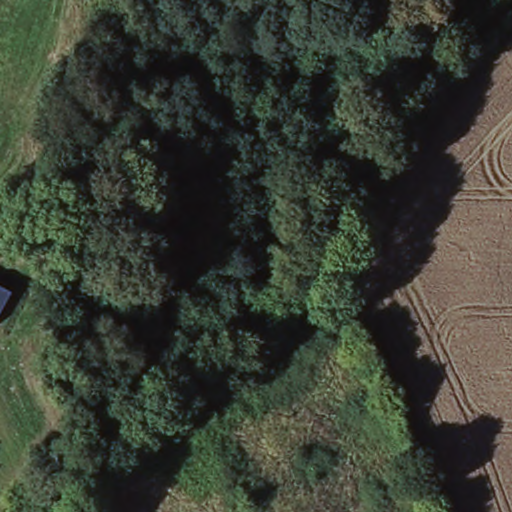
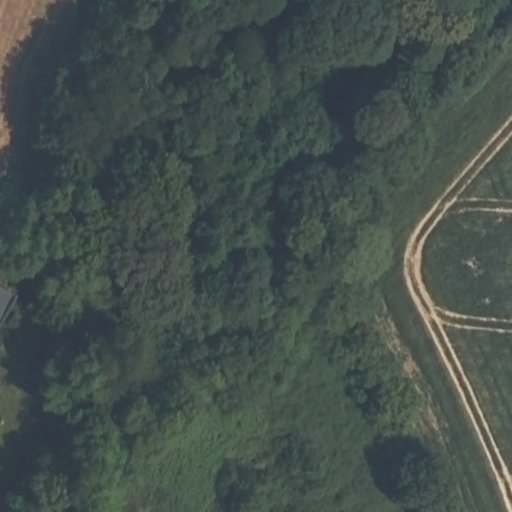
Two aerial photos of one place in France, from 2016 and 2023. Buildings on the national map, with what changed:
unchanged [(0,315),(0,288),(11,294),(0,315)]

